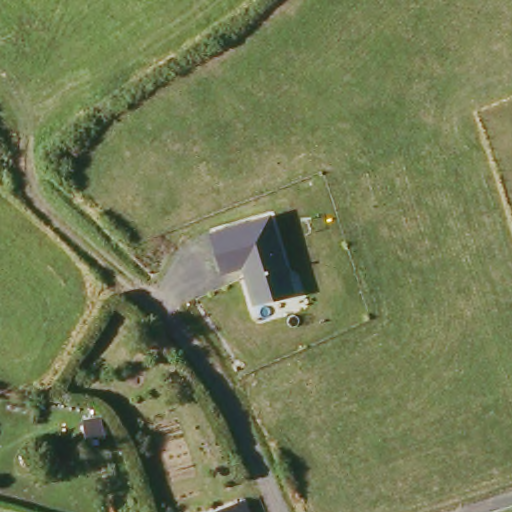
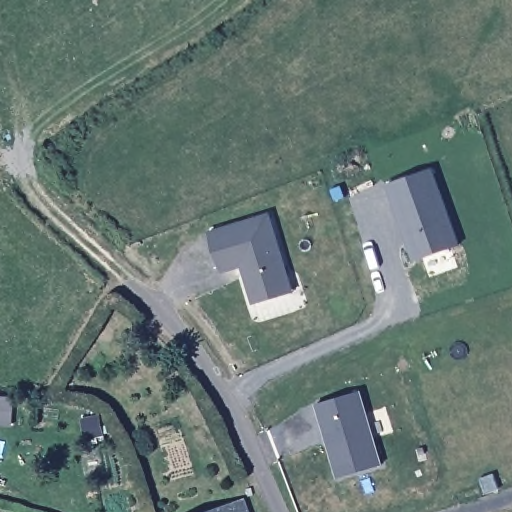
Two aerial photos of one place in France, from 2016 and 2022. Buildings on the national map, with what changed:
new [(414,262),(387,185),(432,168),(460,245),(414,262)]
unchanged [(279,296),(255,303),(246,272),(243,265),(223,271),(211,233),(270,215),(288,274),(293,292),(279,296)]
new [(314,405),(360,392),(381,465),(336,478),(314,405)]
unchanged [(244,512),(234,512),(243,509),(244,512)]

